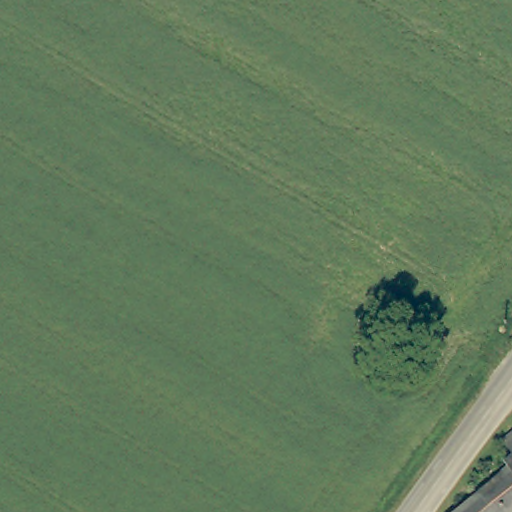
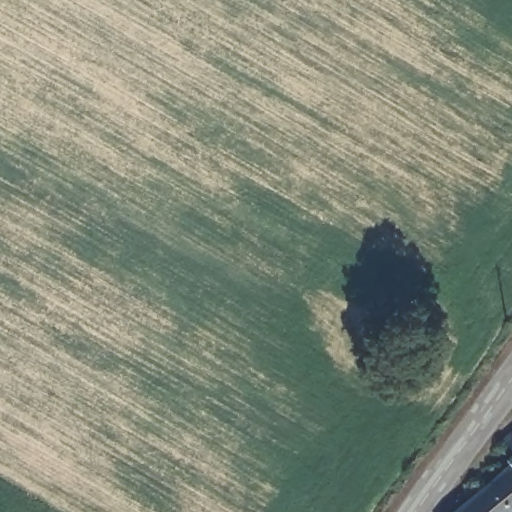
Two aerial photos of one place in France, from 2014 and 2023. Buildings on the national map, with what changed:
unchanged [(507,446),(512,442),(512,453),(507,446)]
unchanged [(509,471),(506,466),(512,460),(512,512),(462,512),(509,471)]

